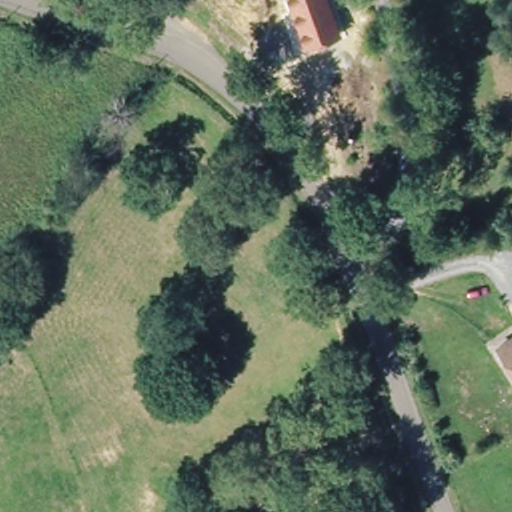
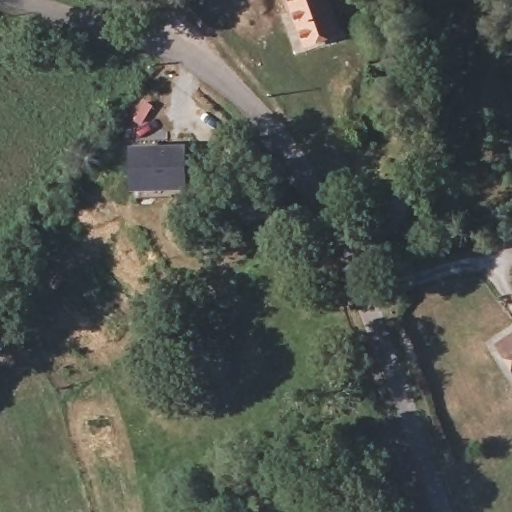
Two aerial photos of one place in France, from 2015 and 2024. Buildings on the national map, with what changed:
unchanged [(305,51),(290,0),(329,0),(342,35),(305,51)]
new [(130,145),(187,144),(188,191),(132,191),(130,145)]
unchanged [(511,381),(501,348),(497,336),(512,332),(512,381),(511,381)]

